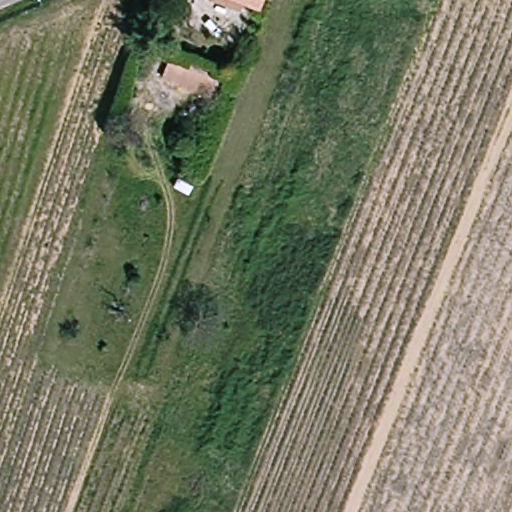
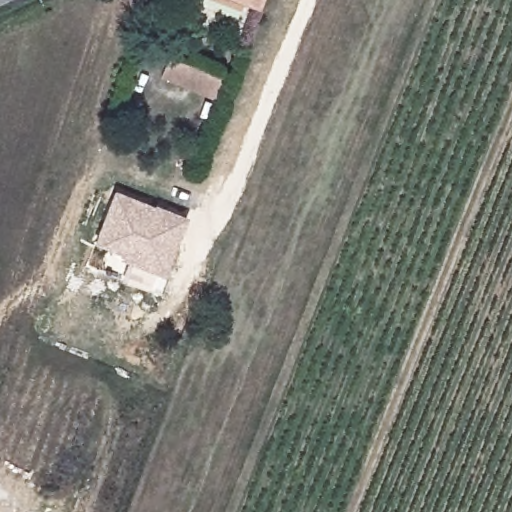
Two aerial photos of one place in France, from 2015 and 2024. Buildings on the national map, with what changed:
unchanged [(252,12),(222,0),(257,0),(252,12)]
unchanged [(168,54),(185,60),(222,75),(213,98),(177,84),(160,78),(168,54)]
new [(188,217),(165,276),(157,272),(152,290),(122,280),(127,261),(120,258),(122,254),(94,242),(114,189),(155,206),(156,203),(188,217)]

